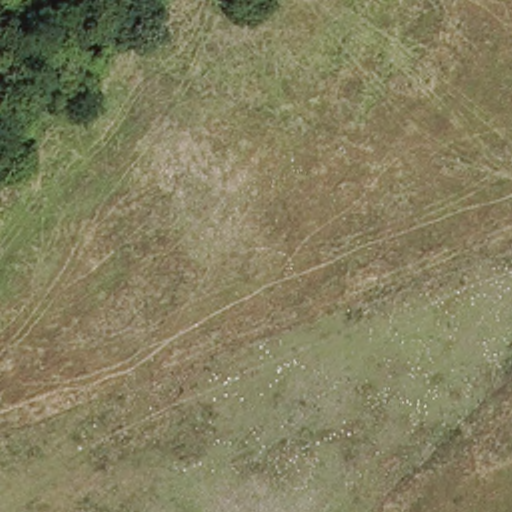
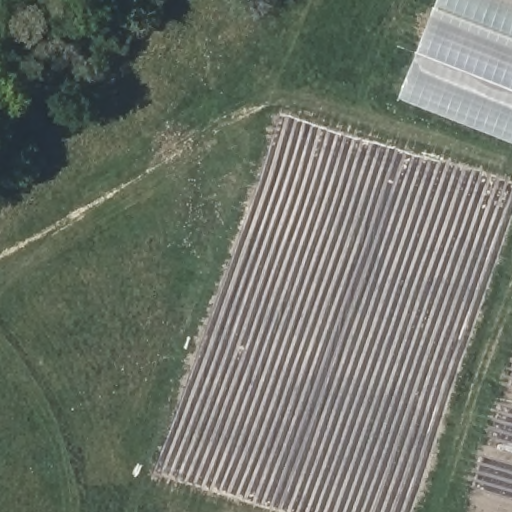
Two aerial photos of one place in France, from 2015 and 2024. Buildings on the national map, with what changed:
new [(401,101),(440,0),(512,0),(512,144),(401,101)]

